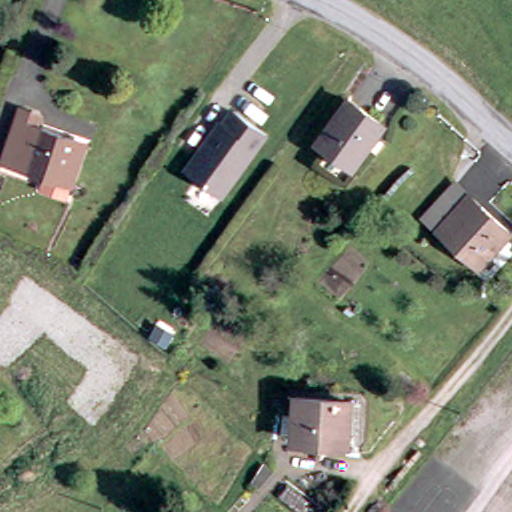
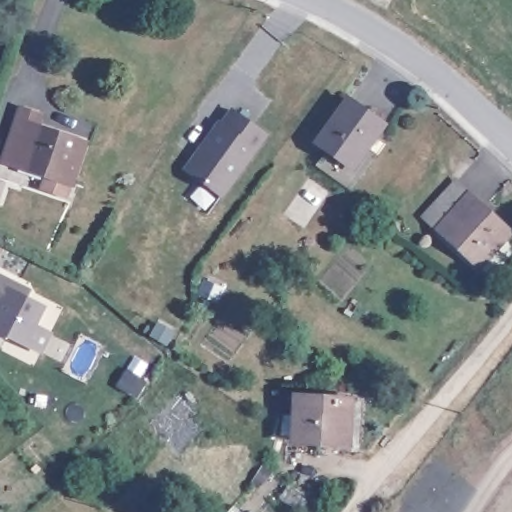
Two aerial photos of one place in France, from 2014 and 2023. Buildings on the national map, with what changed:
unchanged [(340,162),(312,140),(342,96),(377,122),(367,137),(346,166),(340,162)]
unchanged [(38,184),(42,172),(13,162),(0,158),(0,151),(5,136),(15,104),(35,111),(32,122),(80,139),(65,181),(62,192),(38,184)]
unchanged [(269,134),(220,198),(182,169),(230,106),(269,134)]
unchanged [(502,243),(482,269),(438,232),(425,221),(455,184),(468,196),(506,228),(512,232),(502,243)]
unchanged [(0,212),(0,200),(4,202),(0,212)]
new [(28,296),(47,306),(38,326),(54,332),(43,354),(0,334),(0,272),(32,287),(28,296)]
unchanged [(347,440),(283,437),(284,393),(351,396),(347,440)]

